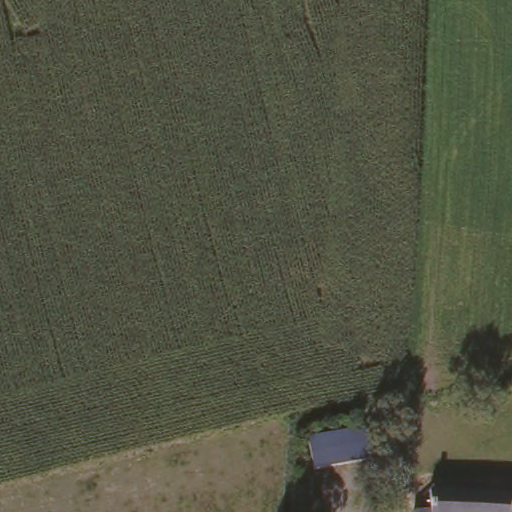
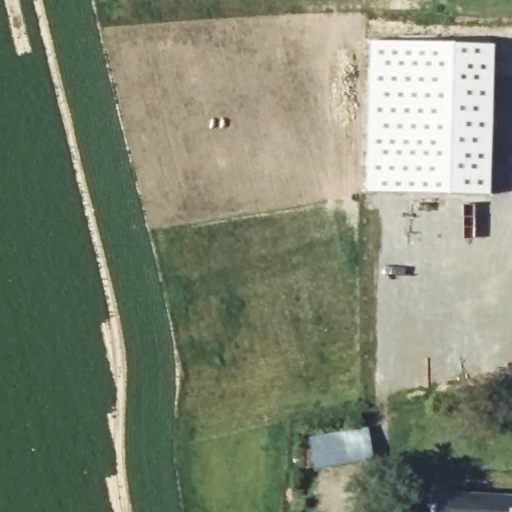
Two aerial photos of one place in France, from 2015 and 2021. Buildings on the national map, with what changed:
new [(384,38),(491,39),(489,220),(382,219),(384,38)]
unchanged [(308,436),(371,425),(376,456),(314,468),(308,436)]
unchanged [(422,509),(424,491),(512,498),(512,512),(409,512),(409,509),(422,509)]

